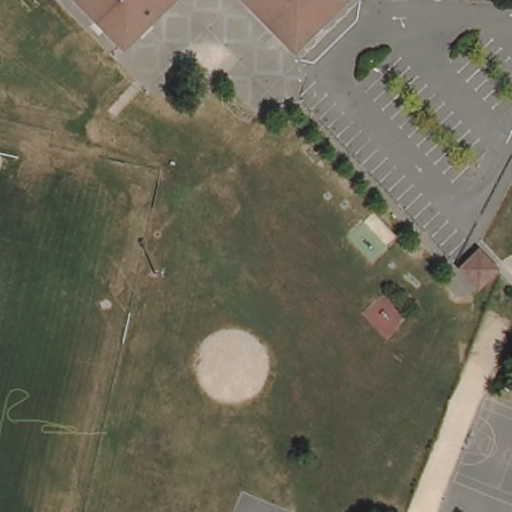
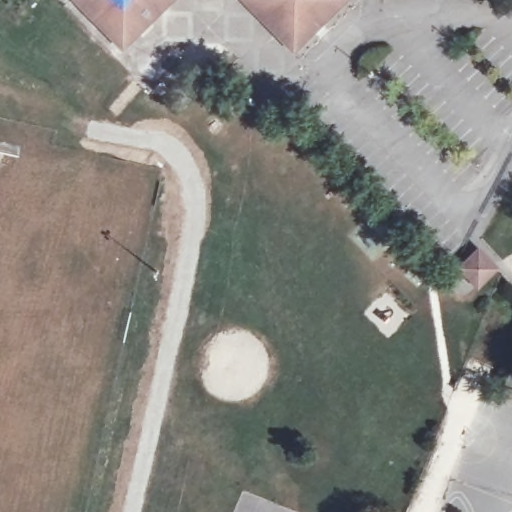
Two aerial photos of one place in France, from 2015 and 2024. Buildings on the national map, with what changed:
unchanged [(181,1),(129,56),(76,2),(79,0),(180,0),(181,1)]
unchanged [(356,3),(305,52),(253,0),(353,0),(356,3)]
unchanged [(479,284),(472,277),(463,266),(480,249),(483,253),(496,267),(479,284)]

